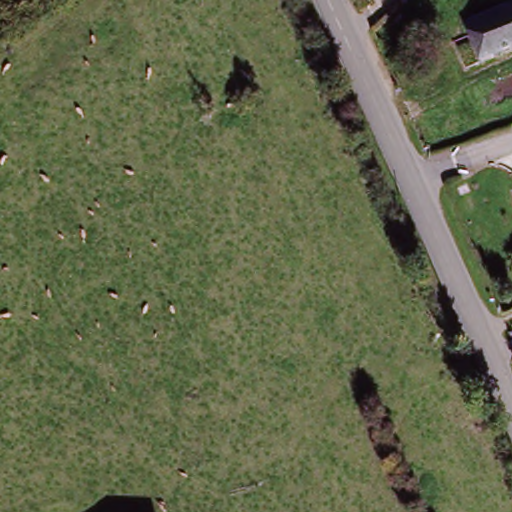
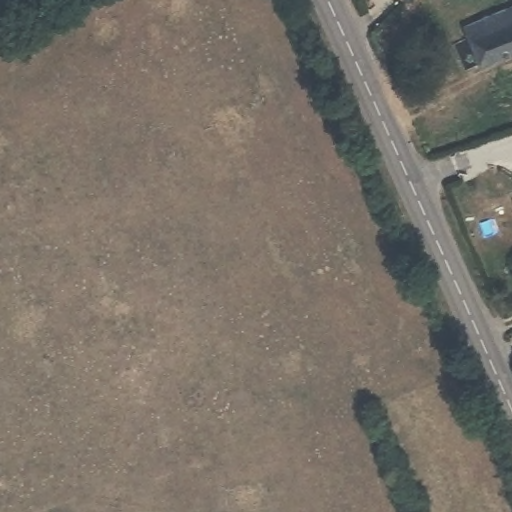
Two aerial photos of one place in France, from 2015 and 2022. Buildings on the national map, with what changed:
unchanged [(466,43),(462,31),(512,10),(512,54),(475,68),(466,43)]

